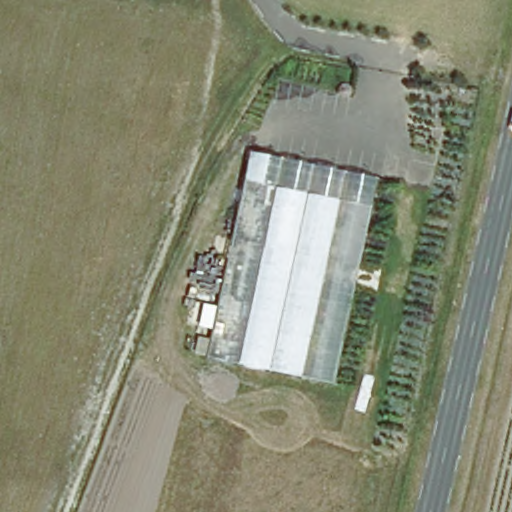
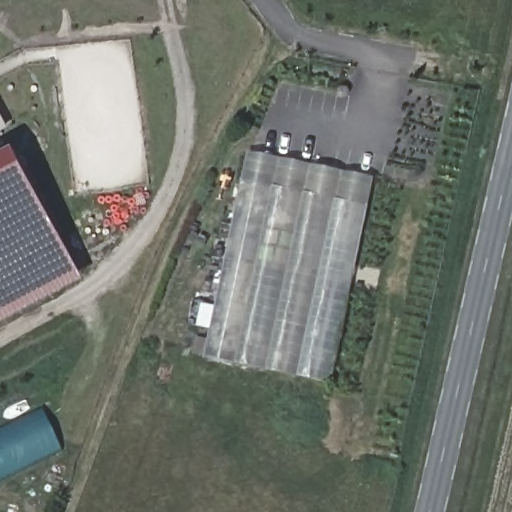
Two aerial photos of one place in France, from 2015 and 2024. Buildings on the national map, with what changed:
new [(0,130),(0,112),(7,126),(0,130)]
new [(0,148),(12,141),(83,277),(0,321),(0,148)]
unchanged [(244,183),(250,152),(376,179),(371,209),(244,183)]
unchanged [(333,386),(207,359),(244,183),(371,209),(333,386)]
new [(62,449),(0,480),(0,433),(45,412),(62,449)]

